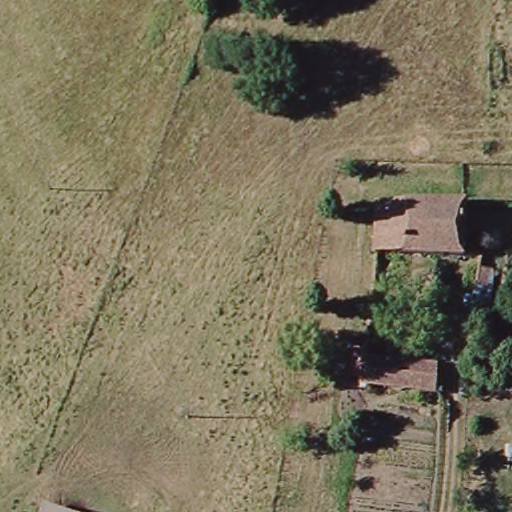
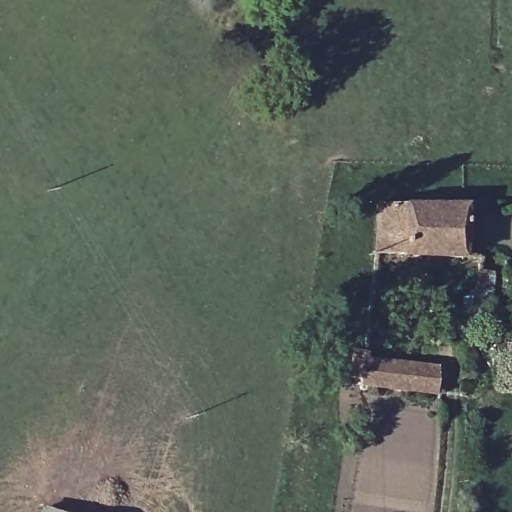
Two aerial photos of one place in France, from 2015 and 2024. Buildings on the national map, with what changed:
unchanged [(384,192),(471,202),(465,257),(377,246),(384,192)]
unchanged [(507,262),(500,302),(477,297),(483,258),(507,262)]
unchanged [(441,396),(366,387),(367,381),(353,377),(357,349),(364,350),(445,363),(441,396)]
unchanged [(68,512),(50,512),(52,507),(68,512)]

